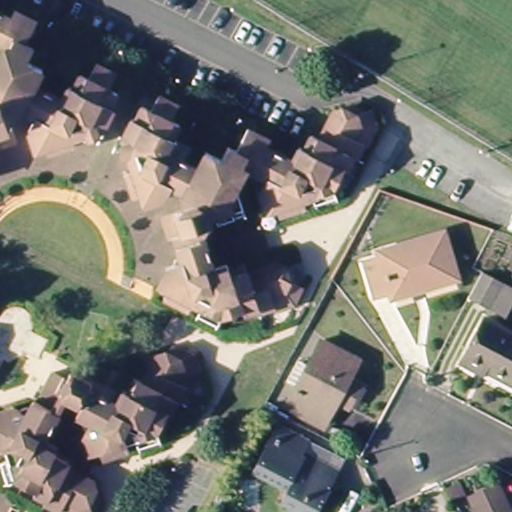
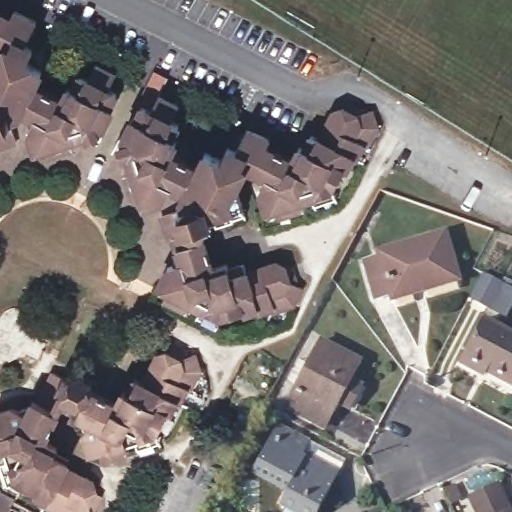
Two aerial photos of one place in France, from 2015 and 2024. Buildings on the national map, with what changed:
unchanged [(9,16),(0,29),(0,11),(9,16)]
unchanged [(17,20),(21,11),(42,23),(31,44),(40,48),(32,62),(49,71),(40,86),(67,102),(75,87),(79,90),(87,74),(95,78),(102,66),(123,76),(116,89),(125,94),(117,109),(122,112),(110,132),(112,134),(103,152),(91,145),(90,140),(72,144),(74,150),(54,156),(51,148),(40,151),(35,134),(43,119),(28,111),(23,122),(18,124),(24,144),(0,151),(0,67),(2,66),(11,51),(0,44),(0,29),(9,16),(17,20)]
unchanged [(170,117),(180,123),(172,137),(180,141),(175,151),(197,164),(206,149),(222,158),(228,146),(237,151),(250,127),(270,138),(267,143),(293,158),(301,142),(306,145),(311,133),(320,138),(335,108),(358,101),(374,109),(385,143),(375,164),(366,159),(351,190),(271,217),(260,184),(265,175),(247,166),(239,183),(249,211),(227,218),(224,209),(209,215),(211,222),(202,225),(213,265),(227,262),(229,268),(246,263),(249,271),(278,262),(301,275),(305,288),(289,324),(266,331),(263,322),(219,334),(215,324),(153,293),(168,264),(182,259),(177,243),(197,238),(194,228),(169,237),(160,211),(181,205),(175,188),(167,184),(163,195),(142,200),(139,190),(131,192),(124,166),(130,164),(126,152),(119,153),(115,148),(112,145),(120,132),(122,134),(142,104),(139,102),(146,86),(154,90),(159,93),(177,102),(170,117)]
unchanged [(458,291),(391,304),(390,296),(375,299),(368,263),(380,260),(378,252),(448,238),(458,291)]
unchanged [(512,288),(512,319),(472,297),(485,274),(512,288)]
unchanged [(512,337),(512,385),(485,370),(481,377),(460,365),(485,321),(512,337)]
unchanged [(321,336),(360,356),(350,375),(367,384),(355,409),(341,403),(331,422),(288,400),(321,336)]
unchanged [(87,386),(115,401),(121,388),(125,390),(134,375),(142,380),(156,354),(182,344),(194,351),(206,389),(195,410),(188,406),(172,436),(99,458),(89,454),(82,432),(90,418),(75,409),(76,407),(64,400),(43,436),(54,441),(51,446),(68,456),(64,463),(92,479),(99,499),(92,512),(37,512),(39,509),(7,492),(2,475),(0,469),(0,409),(12,405),(22,411),(30,397),(49,407),(55,396),(41,388),(50,368),(66,377),(70,369),(91,379),(87,386)]
unchanged [(305,440),(341,460),(329,482),(313,512),(300,512),(282,502),(291,486),(254,466),(276,425),(305,440)]
unchanged [(472,495),(485,489),(495,485),(506,512),(479,512),(472,495)]

